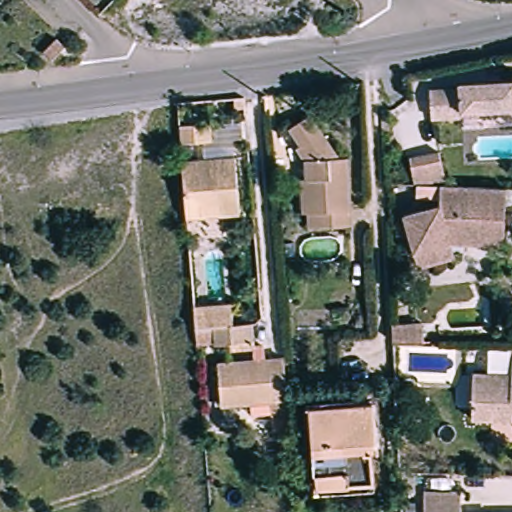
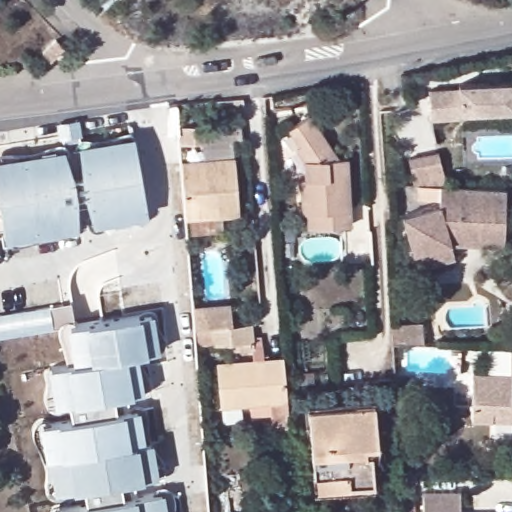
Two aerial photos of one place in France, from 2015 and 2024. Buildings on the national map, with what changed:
unchanged [(45,53),(58,40),(66,47),(53,60),(45,53)]
unchanged [(463,112),(431,114),(429,85),(458,83),(458,79),(512,76),(512,104),(462,107),(463,112)]
unchanged [(390,130),(382,131),(381,123),(381,110),(388,109),(390,130)]
unchanged [(350,221),(310,222),(309,208),(303,208),(302,173),(307,173),(306,155),(305,155),(296,142),(300,139),(289,123),(309,110),(339,153),(347,153),(350,221)]
unchanged [(211,141),(181,143),(179,125),(209,123),(211,141)]
new [(6,239),(0,209),(0,157),(133,133),(147,214),(6,239)]
unchanged [(414,192),(406,153),(440,148),(449,181),(440,181),(440,193),(414,192)]
unchanged [(185,207),(182,162),(235,157),(239,213),(222,214),(186,217),(185,207)]
unchanged [(506,183),(504,239),(451,237),(413,247),(403,210),(403,209),(440,199),(440,193),(440,181),(449,181),(506,183)]
unchanged [(418,262),(413,247),(451,237),(455,251),(418,262)]
new [(71,301),(74,325),(67,326),(0,338),(0,313),(71,301)]
unchanged [(249,336),(211,339),(211,338),(192,340),(190,323),(189,307),(207,306),(209,321),(247,318),(249,336)]
new [(57,507),(86,501),(84,487),(55,491),(41,422),(71,418),(68,401),(56,403),(49,366),(66,363),(73,362),(67,326),(74,325),(85,323),(141,312),(153,311),(159,347),(139,353),(145,389),(133,391),(114,396),(117,412),(140,405),(146,439),(152,439),(158,474),(144,476),(120,481),(123,497),(136,495),(164,488),(168,512),(58,512),(57,507)]
unchanged [(424,342),(393,341),(392,324),(423,322),(424,342)]
unchanged [(289,411),(271,413),(270,397),(221,401),(217,358),(284,352),(289,411)]
unchanged [(473,372),(512,374),(512,366),(512,367),(512,420),(493,419),(472,419),(473,372)]
unchanged [(376,434),(366,435),(366,440),(370,439),(373,472),(374,472),(375,480),(315,484),(314,481),(316,481),(309,398),(310,397),(372,392),(376,434)]
unchanged [(424,488),(461,487),(461,512),(424,512),(424,488)]

